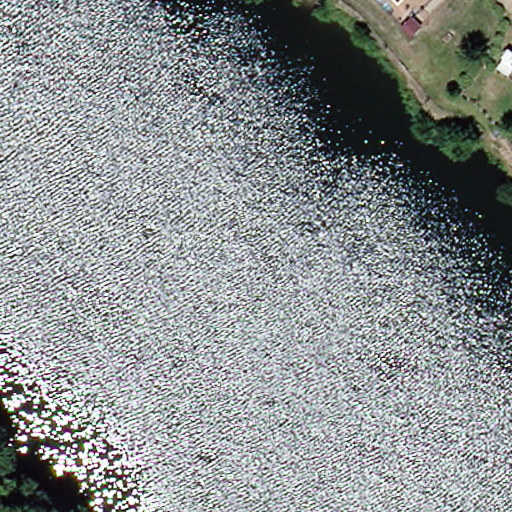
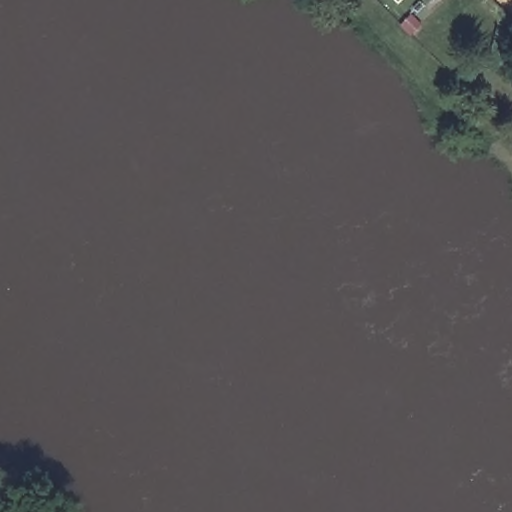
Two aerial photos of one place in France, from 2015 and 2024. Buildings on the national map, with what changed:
unchanged [(410,30),(417,37),(407,47),(398,38),(408,29),(410,30)]

